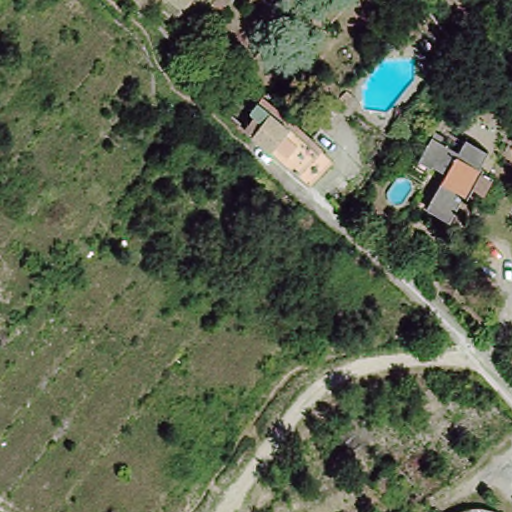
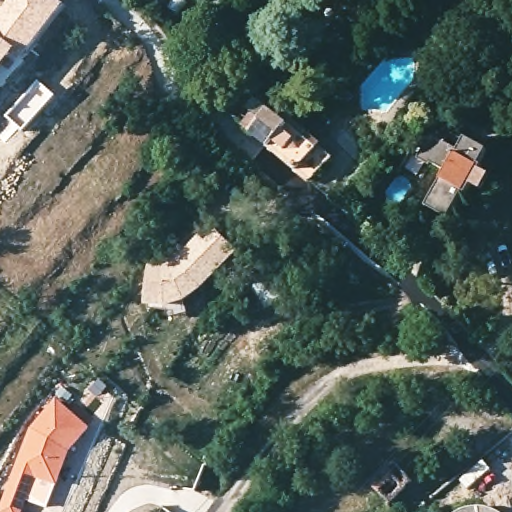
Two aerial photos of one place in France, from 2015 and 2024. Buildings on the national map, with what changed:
new [(9,0),(60,0),(67,6),(30,53),(22,48),(21,49),(0,34),(0,10),(9,0)]
new [(21,49),(0,75),(0,34),(21,49)]
unchanged [(328,154),(310,177),(253,125),(265,112),(255,100),(268,88),(299,116),(295,121),(316,142),(328,154)]
unchanged [(492,141),(483,158),(487,162),(468,192),(462,188),(448,210),(429,198),(450,162),(436,155),(424,174),(405,162),(417,141),(425,145),(443,119),(455,127),(452,136),(463,141),(472,129),(492,141)]
new [(162,267),(170,265),(176,262),(211,227),(241,255),(205,290),(187,303),(166,309),(146,307),(150,266),(162,267)]
new [(68,455),(60,486),(36,478),(24,512),(0,512),(0,511),(31,429),(57,400),(91,428),(68,455)]
unchanged [(367,484),(390,462),(408,478),(386,500),(367,484)]

